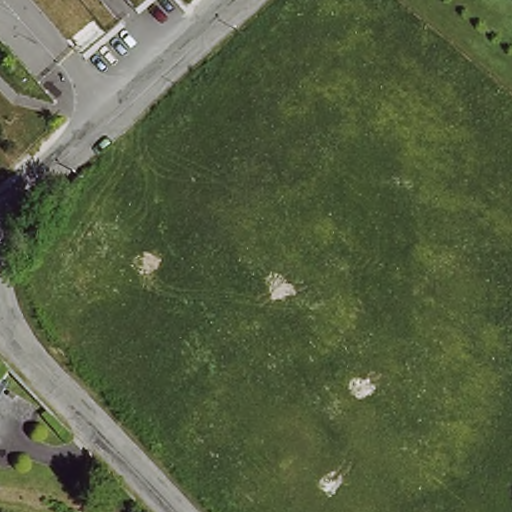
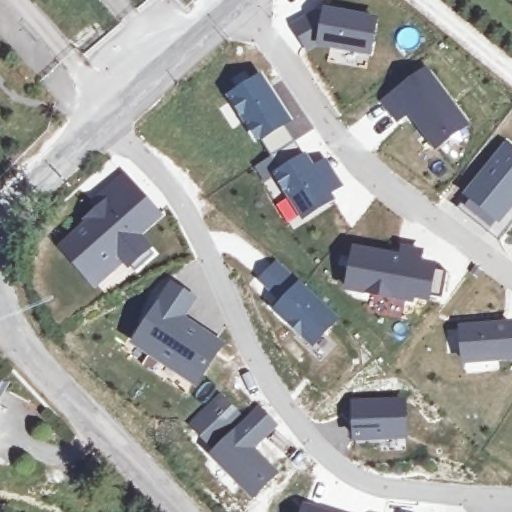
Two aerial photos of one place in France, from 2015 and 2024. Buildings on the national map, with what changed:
new [(371,50),(310,48),(314,0),(324,0),(371,7),(371,50)]
new [(470,120),(436,147),(411,113),(395,119),(381,97),(427,62),(470,120)]
new [(268,75),(293,122),(260,143),(225,85),(268,75)]
new [(463,195),(506,142),(512,146),(512,211),(500,226),(463,195)]
new [(310,145),(340,191),(298,217),(270,166),(310,145)]
new [(58,248),(130,177),(165,217),(142,236),(153,248),(130,270),(123,265),(96,290),(58,248)]
new [(438,252),(435,300),(340,287),(343,233),(438,252)]
new [(282,302),(259,281),(277,261),(300,282),(341,320),(314,349),(273,312),(282,302)]
new [(131,345),(172,282),(198,300),(186,318),(226,345),(198,390),(131,345)]
new [(512,358),(459,363),(459,325),(512,322),(512,358)]
new [(187,424),(220,391),(232,405),(243,416),(257,403),(278,426),(255,447),(279,472),(251,499),(206,452),(209,450),(198,437),(187,424)]
new [(351,401),(407,399),(409,440),(355,443),(351,401)]
new [(302,499),(340,512),(298,512),(302,499)]

